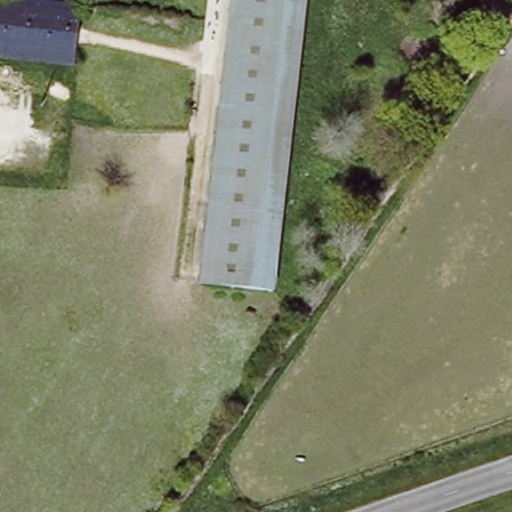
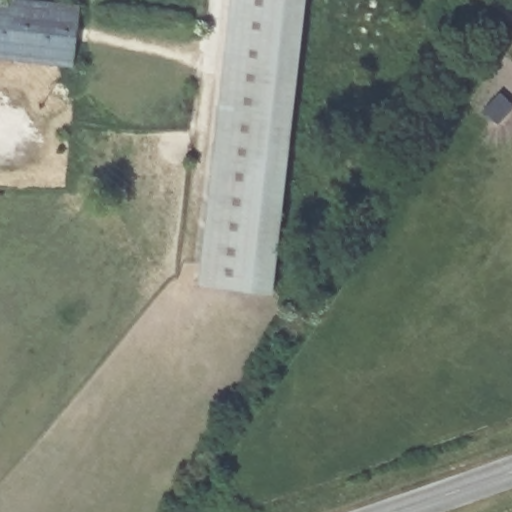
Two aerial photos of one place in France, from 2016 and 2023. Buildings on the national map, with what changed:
unchanged [(50,0),(80,3),(74,76),(0,64),(0,0),(50,0)]
unchanged [(308,0),(277,293),(198,286),(230,0),(308,0)]

